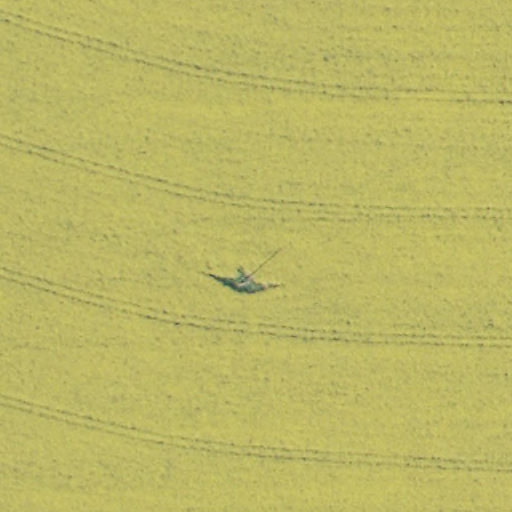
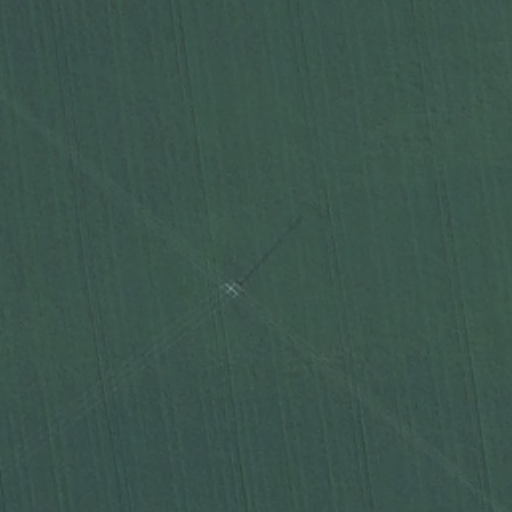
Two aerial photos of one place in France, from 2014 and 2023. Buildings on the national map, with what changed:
[]

